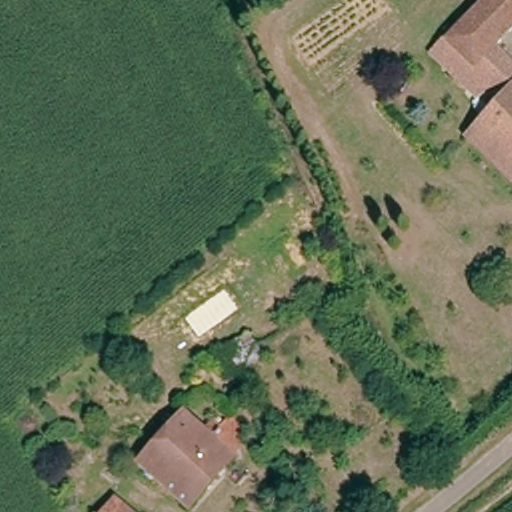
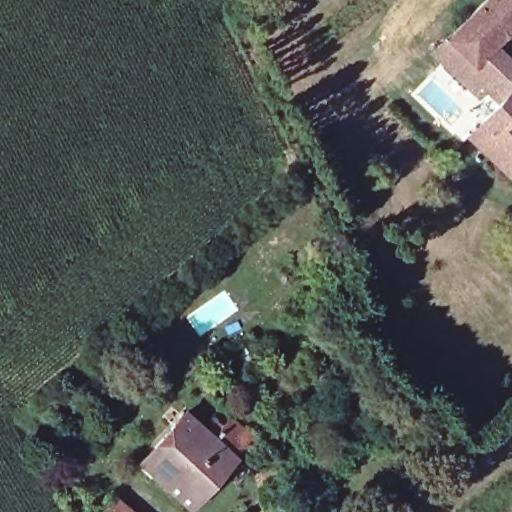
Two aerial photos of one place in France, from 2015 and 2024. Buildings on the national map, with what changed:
unchanged [(512,50),(512,160),(477,125),(509,95),(495,81),(486,91),(462,66),(473,55),(450,32),(452,30),(482,0),(512,0),(512,25),(499,38),(512,50)]
unchanged [(229,456),(234,460),(188,507),(138,465),(185,413),(203,430),(210,423),(218,430),(225,423),(245,440),(242,442),(229,456)]
unchanged [(113,494),(125,504),(134,494),(151,509),(148,512),(97,512),(99,510),(113,494)]

